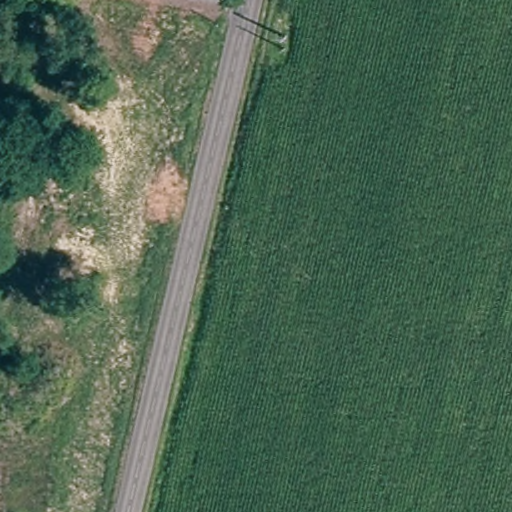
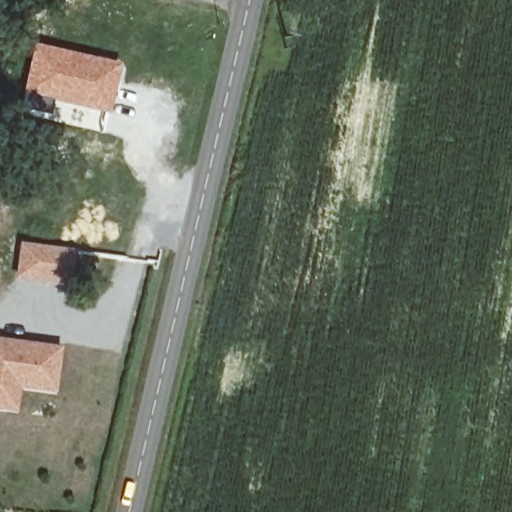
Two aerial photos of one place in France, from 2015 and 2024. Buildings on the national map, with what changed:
new [(31,42),(119,62),(109,114),(78,109),(21,93),(31,42)]
new [(76,250),(71,286),(15,278),(20,242),(76,250)]
new [(56,393),(21,388),(17,411),(0,409),(0,338),(62,346),(56,393)]

